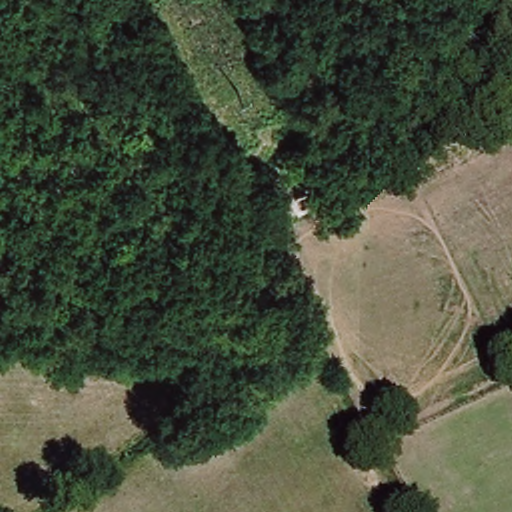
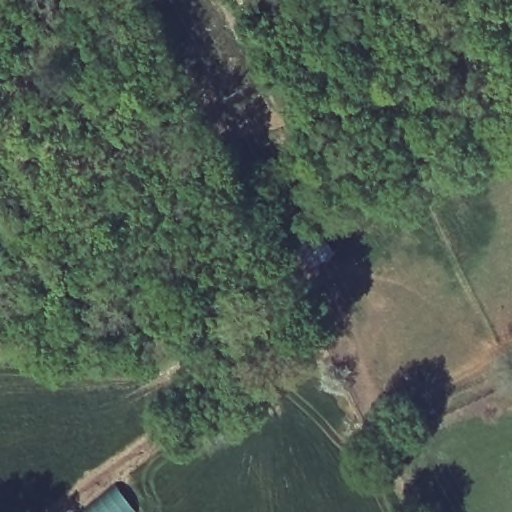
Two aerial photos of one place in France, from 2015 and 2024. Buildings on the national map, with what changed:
new [(119,490),(135,512),(89,512),(119,490)]

